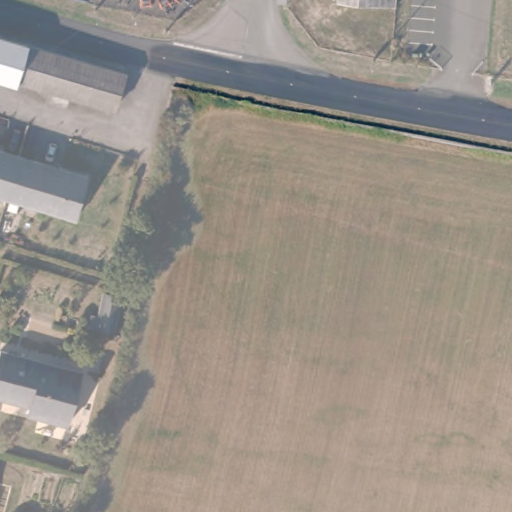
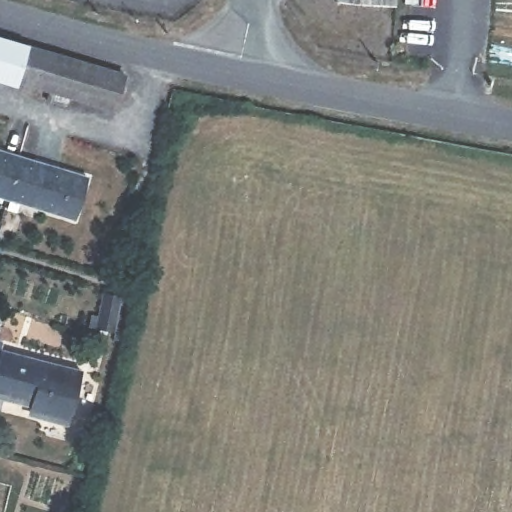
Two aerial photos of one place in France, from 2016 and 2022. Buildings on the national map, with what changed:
unchanged [(333,4),(333,0),(394,0),(393,11),(333,4)]
unchanged [(42,100),(45,90),(18,82),(17,89),(0,84),(0,35),(123,72),(111,110),(62,95),(60,105),(42,100)]
unchanged [(0,193),(0,150),(14,154),(4,195),(0,193)]
unchanged [(85,174),(76,213),(4,195),(14,154),(85,174)]
unchanged [(128,295),(121,328),(91,323),(99,290),(128,295)]
unchanged [(80,374),(67,428),(37,421),(39,413),(0,403),(0,358),(1,355),(80,374)]

